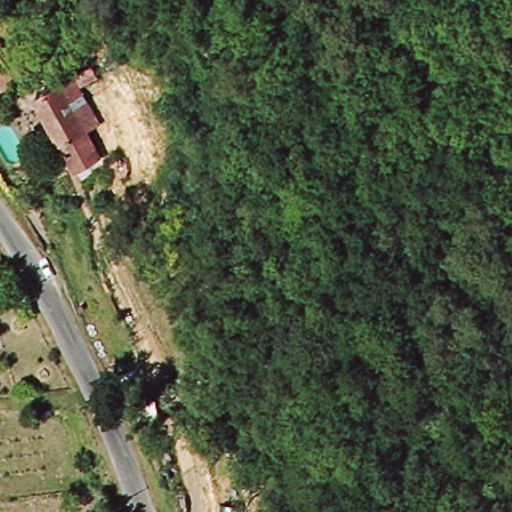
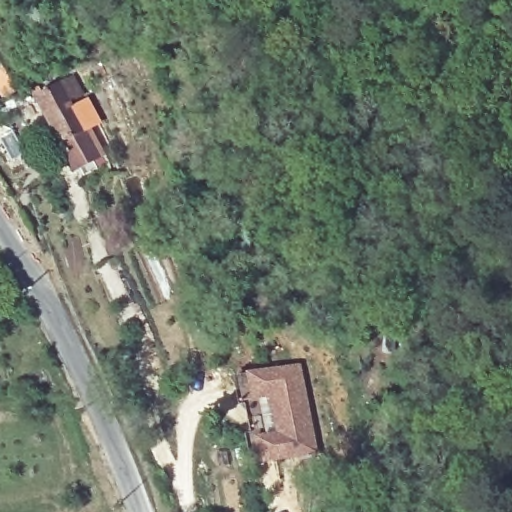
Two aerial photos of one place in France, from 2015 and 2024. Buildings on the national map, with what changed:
unchanged [(71,179),(31,104),(68,80),(84,74),(95,92),(76,101),(92,130),(78,138),(93,167),(71,179)]
new [(299,363),(315,452),(258,463),(253,437),(277,433),(270,395),(251,398),(247,373),(299,363)]

